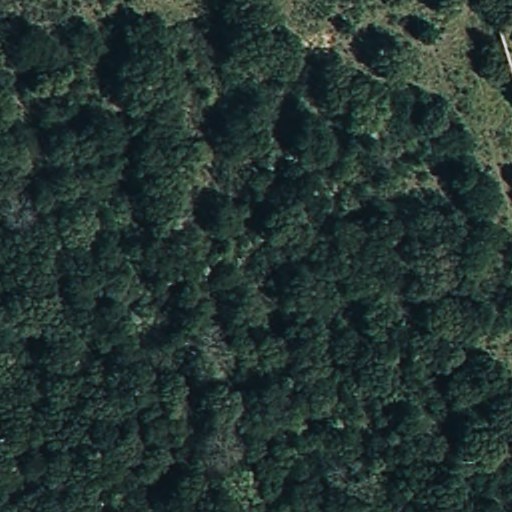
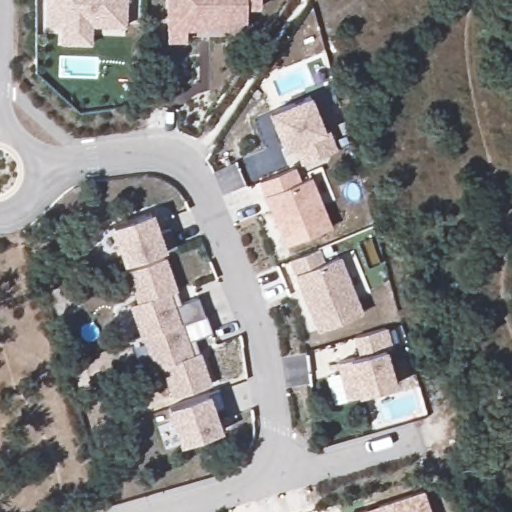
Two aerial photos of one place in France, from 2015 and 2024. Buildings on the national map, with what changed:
new [(92,26),(91,44),(61,43),(61,25),(48,24),(49,0),(127,0),(126,25),(92,26)]
new [(260,0),(260,8),(246,8),(246,28),(186,29),(186,41),(167,41),(167,0),(260,0)]
new [(308,99),(322,134),(326,132),(335,153),(300,167),(292,148),(282,152),(268,115),(308,99)]
new [(292,170),(298,184),(308,180),(329,230),(284,249),(257,184),(292,170)]
new [(159,231),(169,228),(173,244),(165,247),(165,248),(162,250),(179,303),(198,297),(209,331),(193,337),(214,391),(217,390),(223,406),(215,410),(222,430),(180,446),(167,408),(173,406),(160,366),(153,368),(130,305),(136,302),(123,264),(110,226),(152,212),(159,231)]
new [(316,252),(322,265),(337,259),(360,316),(317,334),(288,263),(316,252)]
new [(359,358),(354,339),(384,331),(389,351),(383,353),(393,388),(346,401),(336,365),(359,358)]
new [(424,490),(431,512),(358,512),(424,490)]

